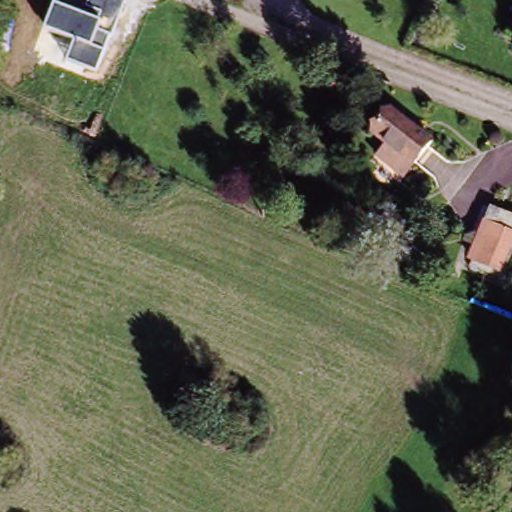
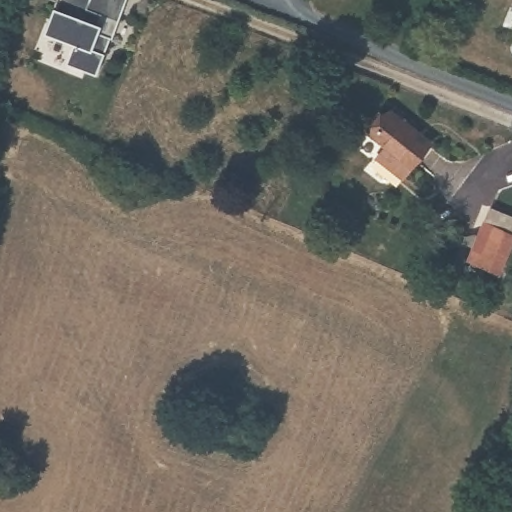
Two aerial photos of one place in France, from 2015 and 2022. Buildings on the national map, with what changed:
unchanged [(68,61),(75,41),(45,29),(55,6),(58,0),(125,0),(97,74),(68,61)]
unchanged [(377,132),(397,109),(435,141),(415,164),(405,175),(380,154),(390,143),(377,132)]
unchanged [(512,234),(512,250),(502,276),(471,265),(487,224),(512,234)]

